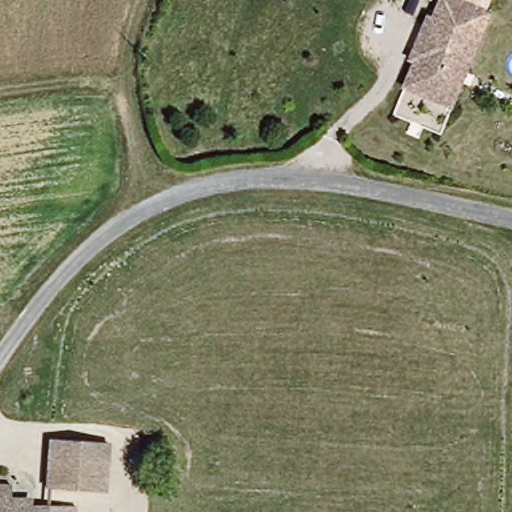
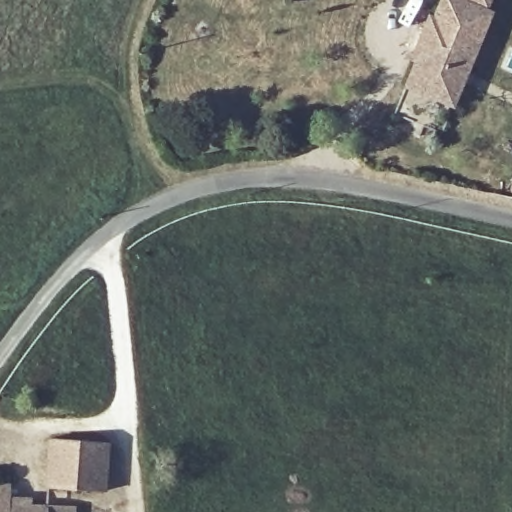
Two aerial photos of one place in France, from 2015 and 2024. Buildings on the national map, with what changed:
unchanged [(486,9),(446,107),(399,88),(409,62),(401,59),(422,11),(430,15),(436,0),(490,0),(486,9)]
unchanged [(43,436),(101,441),(99,487),(90,486),(41,483),(43,448),(43,436)]
unchanged [(73,505),(73,512),(0,512),(0,487),(7,487),(5,504),(44,508),(44,503),(73,505)]

